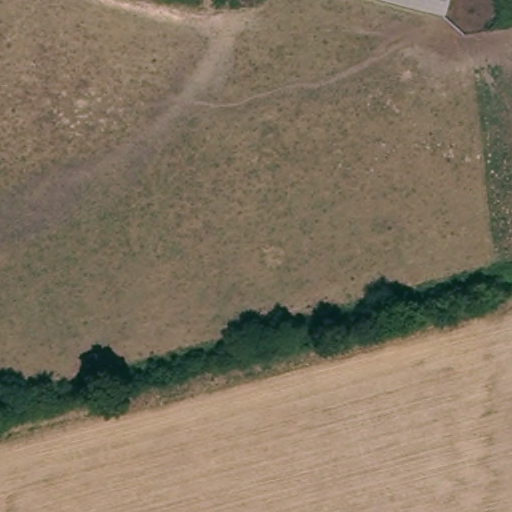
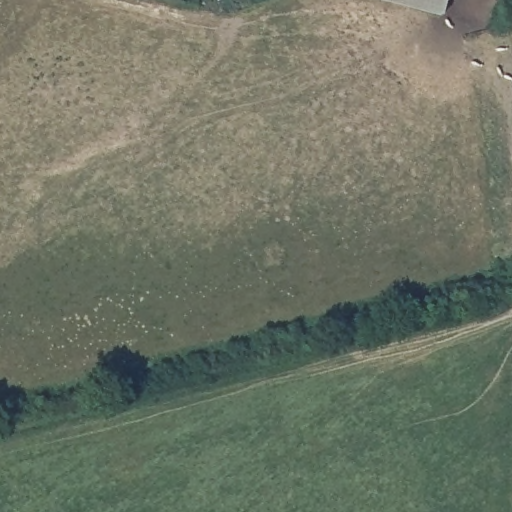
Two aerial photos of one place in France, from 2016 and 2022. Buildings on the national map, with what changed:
unchanged [(446,19),(374,0),(452,0),(446,19)]

